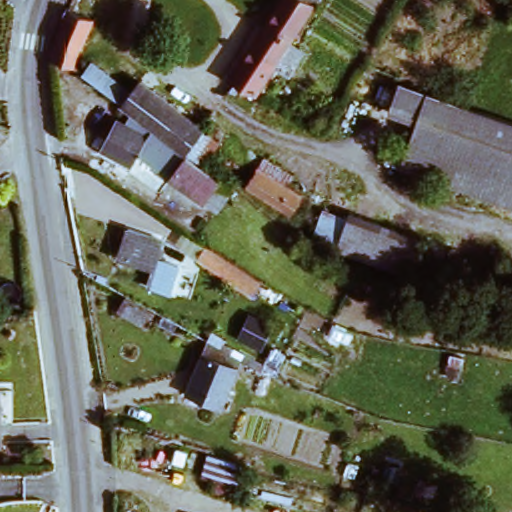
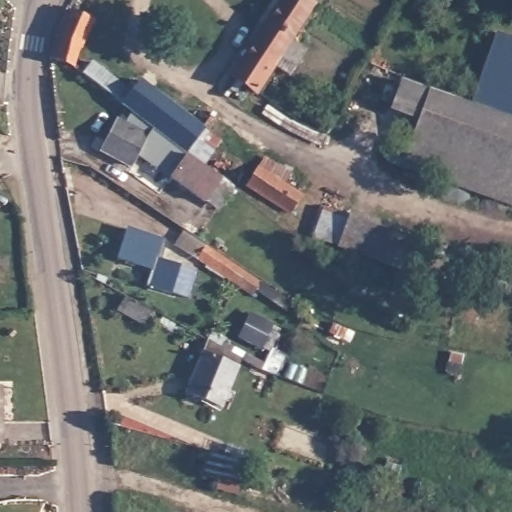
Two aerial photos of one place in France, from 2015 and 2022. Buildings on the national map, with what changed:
unchanged [(278,59),(259,92),(237,80),(235,78),(262,34),(254,29),(261,16),(272,22),(284,0),(313,0),(287,44),(297,50),(289,66),(278,59)]
unchanged [(71,9),(95,20),(73,64),(59,55),(62,31),(71,9)]
new [(512,40),(512,121),(470,106),(495,35),(512,40)]
unchanged [(209,112),(187,149),(114,98),(105,91),(82,75),(94,58),(136,84),(150,74),(209,112)]
unchanged [(392,139),(411,146),(423,114),(395,103),(403,82),(512,121),(512,202),(386,156),(392,139)]
unchanged [(132,152),(126,162),(100,150),(112,124),(121,128),(127,117),(178,156),(220,181),(229,187),(216,205),(207,199),(132,152)]
unchanged [(255,167),(299,190),(289,209),(245,186),(255,167)]
unchanged [(324,204),(426,237),(410,268),(312,237),(324,204)]
unchanged [(154,268),(125,260),(132,238),(160,246),(156,259),(176,265),(169,292),(149,286),(154,268)]
unchanged [(255,293),(200,262),(207,251),(262,281),(255,293)]
unchanged [(7,292),(0,292),(0,271),(5,270),(7,292)]
unchanged [(145,320),(117,302),(126,289),(154,307),(145,320)]
unchanged [(226,382),(235,384),(228,407),(183,393),(195,351),(197,341),(233,354),(230,362),(226,382)]
unchanged [(0,395),(7,395),(7,423),(0,423),(0,395)]
unchanged [(217,491),(217,479),(199,473),(203,452),(245,460),(239,494),(217,491)]

